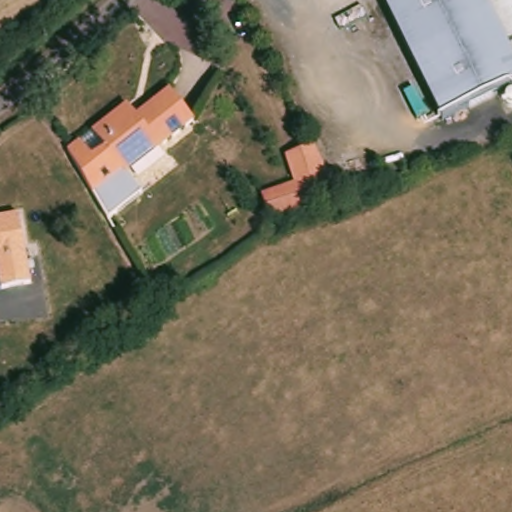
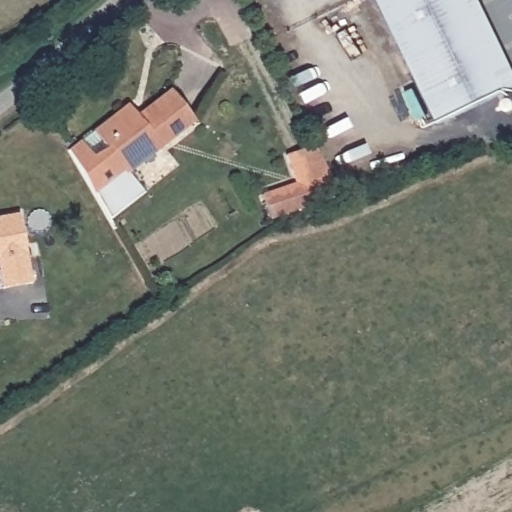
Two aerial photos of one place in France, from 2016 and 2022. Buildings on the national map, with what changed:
unchanged [(444,114),(392,0),(512,0),(512,83),(444,114)]
unchanged [(121,178),(94,132),(131,108),(140,120),(174,99),(194,132),(121,178)]
unchanged [(121,178),(129,172),(146,194),(108,222),(68,150),(94,132),(105,151),(121,178)]
unchanged [(267,201),(277,198),(297,191),(300,189),(288,162),(315,149),(339,200),(308,210),(284,218),(274,221),(267,201)]
unchanged [(6,292),(0,263),(0,220),(18,216),(35,286),(6,292)]

